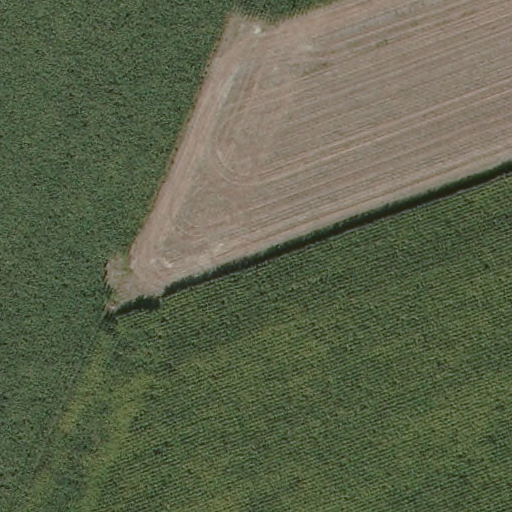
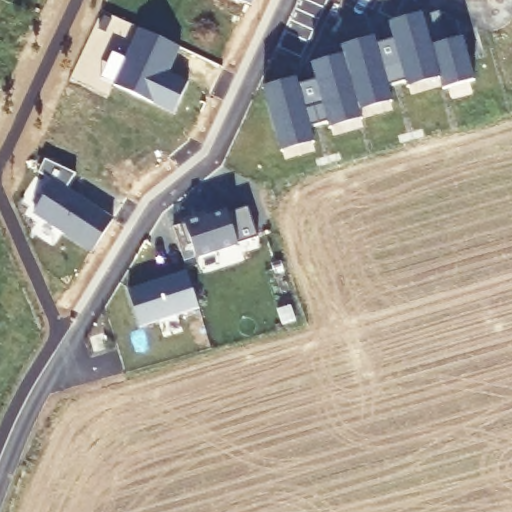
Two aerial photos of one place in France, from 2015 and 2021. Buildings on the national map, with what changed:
new [(281,147),(279,141),(263,88),(295,78),(297,86),(308,82),(303,66),(342,54),(340,46),(372,36),(374,44),(385,41),(380,23),(419,12),(420,15),(437,9),(446,39),(460,35),(473,79),(442,88),(439,77),(388,92),(389,95),(391,101),(360,111),(360,113),(329,123),(327,117),(316,120),(318,129),(321,135),(281,147)]
new [(140,29),(181,48),(173,64),(164,60),(159,72),(187,85),(172,117),(112,89),(140,29)]
new [(53,180),(38,171),(45,160),(76,174),(67,189),(114,219),(94,251),(32,211),(53,180)]
new [(207,217),(206,211),(226,205),(231,213),(248,208),(258,239),(196,258),(185,262),(173,228),(180,226),(207,217)]
new [(187,272),(199,309),(141,328),(129,291),(187,272)]

